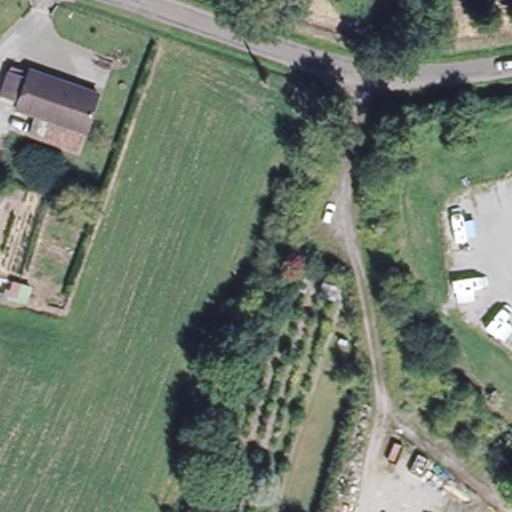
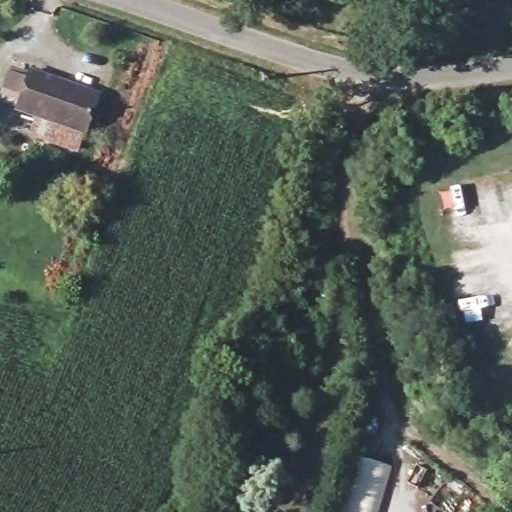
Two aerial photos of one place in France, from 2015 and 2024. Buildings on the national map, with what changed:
unchanged [(103,91),(91,129),(11,101),(21,74),(34,78),(39,70),(103,91)]
new [(365,463),(388,472),(373,512),(350,512),(365,463)]

